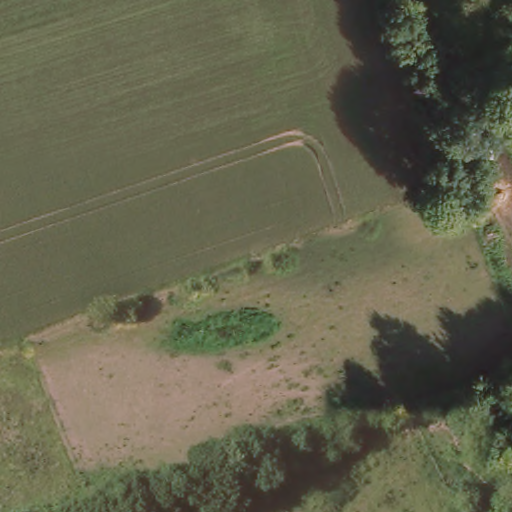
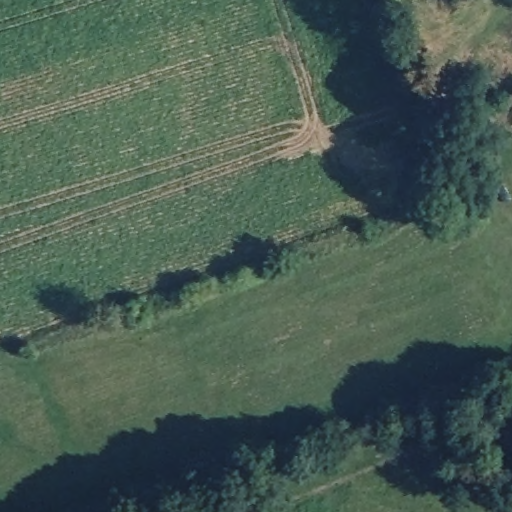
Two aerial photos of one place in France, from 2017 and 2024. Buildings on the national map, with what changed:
[]

